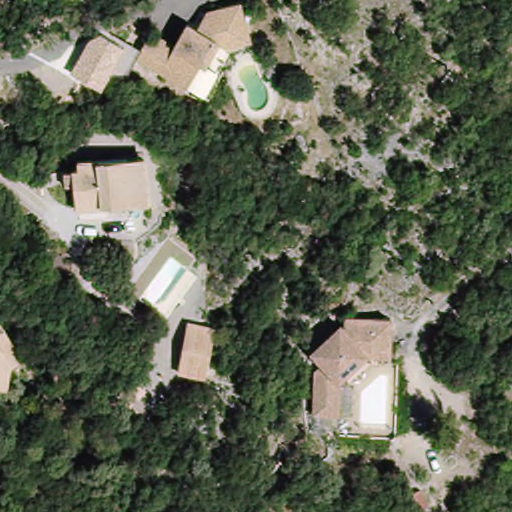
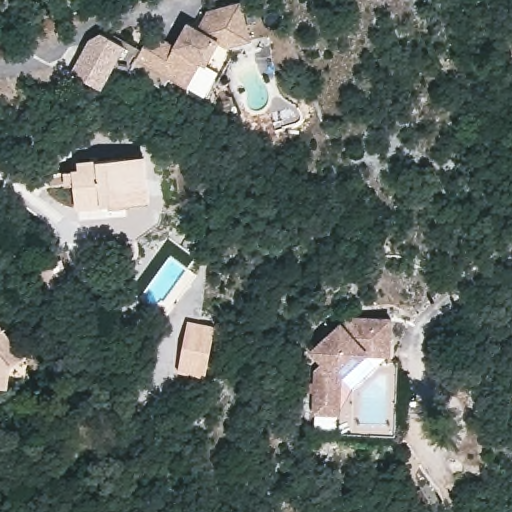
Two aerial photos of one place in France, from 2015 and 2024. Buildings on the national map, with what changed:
unchanged [(173,43),(186,20),(198,25),(206,7),(236,0),(242,0),(253,41),(220,45),(208,64),(203,61),(185,83),(137,57),(150,31),(173,43)]
unchanged [(91,34),(103,29),(125,43),(100,84),(71,67),(91,34)]
unchanged [(68,213),(66,164),(155,159),(154,210),(68,213)]
unchanged [(176,378),(186,324),(215,328),(207,385),(176,378)]
unchanged [(306,411),(310,367),(301,360),(341,327),(371,331),(368,362),(352,361),(336,371),(331,410),(306,411)]
unchanged [(0,404),(0,331),(37,369),(0,404)]

